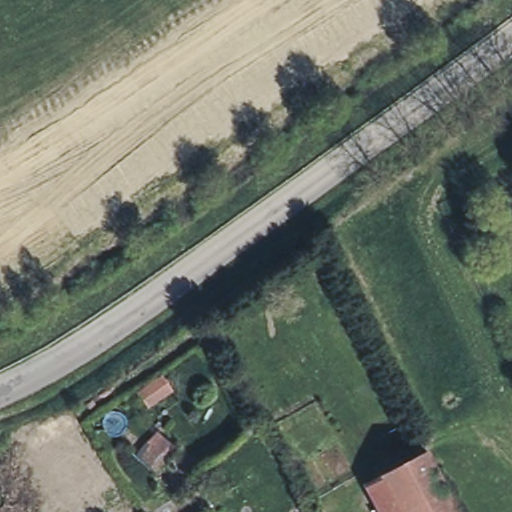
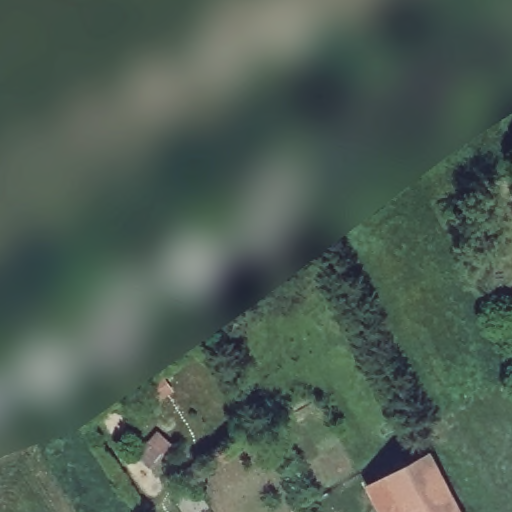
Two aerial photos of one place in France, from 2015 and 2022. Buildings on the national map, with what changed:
unchanged [(313,403),(354,476),(312,499),(270,426),(313,403)]
unchanged [(152,469),(138,457),(145,447),(158,432),(174,444),(152,469)]
unchanged [(378,478),(426,454),(457,512),(396,512),(378,478)]

